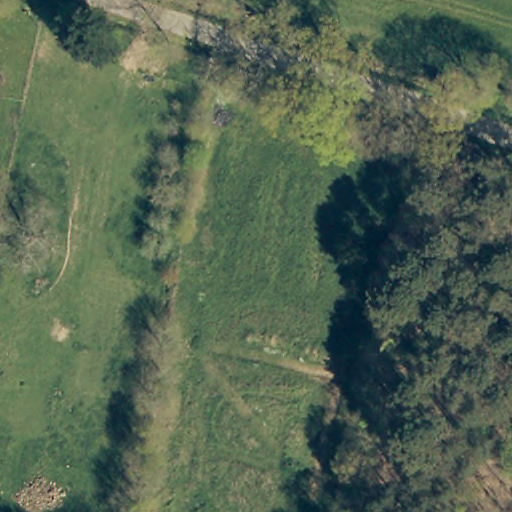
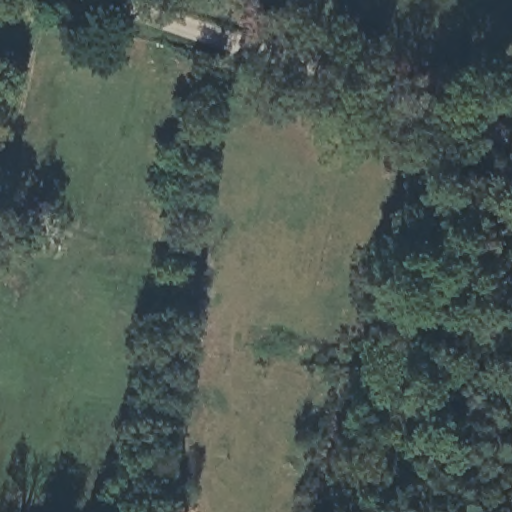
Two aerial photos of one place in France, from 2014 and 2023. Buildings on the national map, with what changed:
[]

